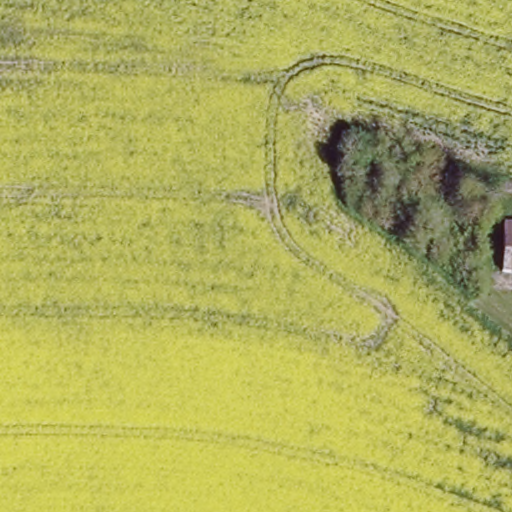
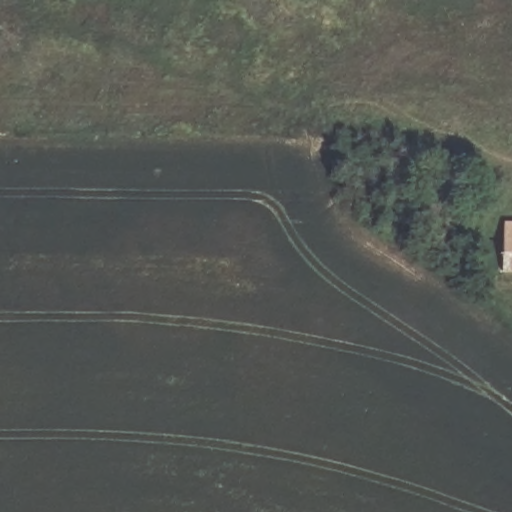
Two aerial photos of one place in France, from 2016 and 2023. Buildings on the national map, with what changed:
unchanged [(500,230),(512,230),(512,274),(502,274),(500,230)]

